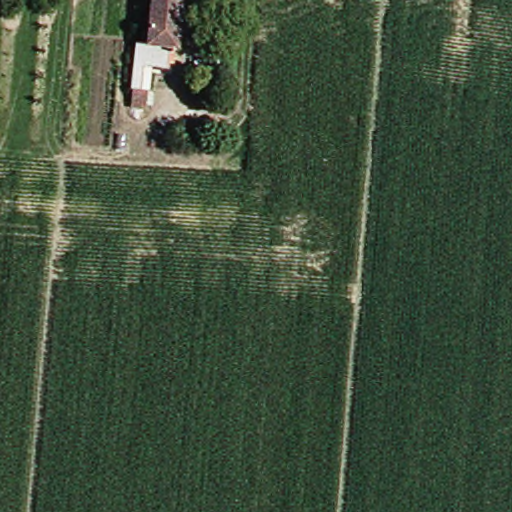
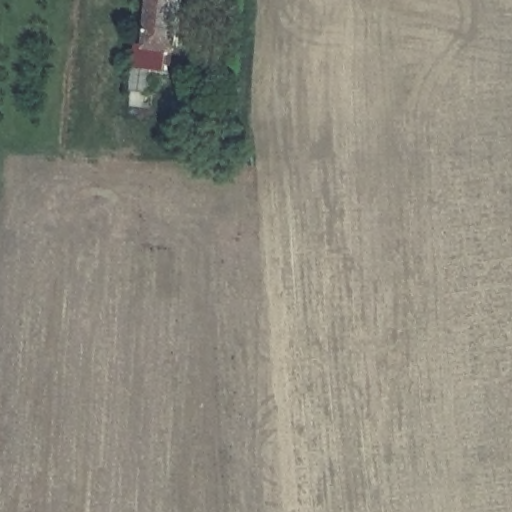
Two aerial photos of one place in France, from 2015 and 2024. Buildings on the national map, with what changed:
unchanged [(184,49),(161,47),(151,108),(136,107),(146,35),(154,35),(159,0),(190,0),(184,49)]

